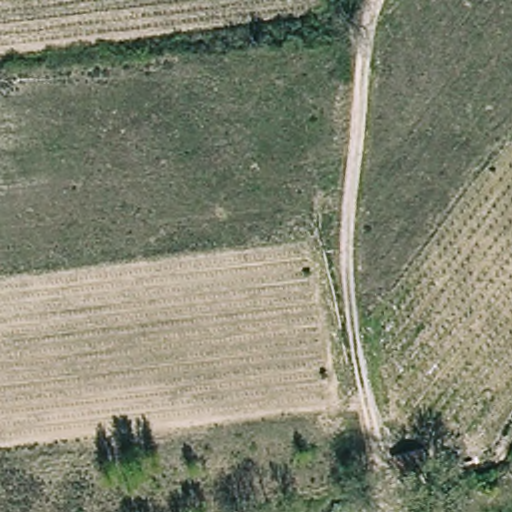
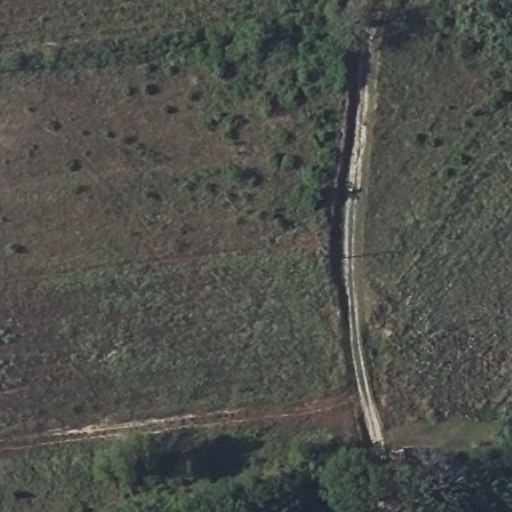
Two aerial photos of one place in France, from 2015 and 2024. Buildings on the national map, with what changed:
unchanged [(427,450),(431,470),(402,477),(397,457),(427,450)]

